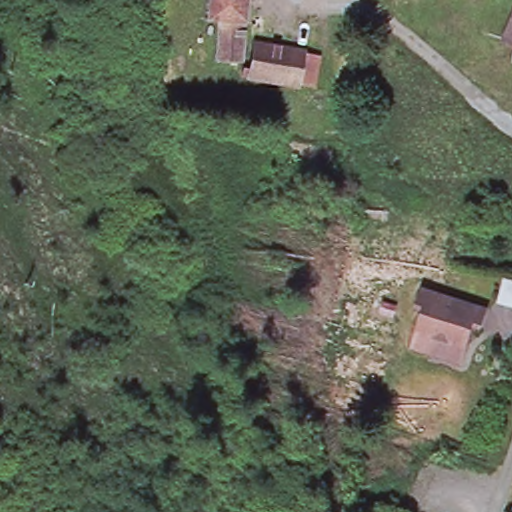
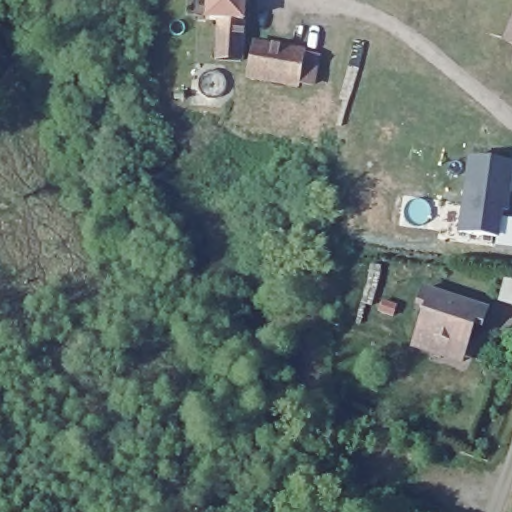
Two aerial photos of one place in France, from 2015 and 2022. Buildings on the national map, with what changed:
unchanged [(211,59),(214,22),(200,21),(202,0),(240,0),(235,61),(211,59)]
unchanged [(507,40),(512,30),(512,42),(507,40)]
unchanged [(309,89),(296,86),(295,89),(247,79),(253,44),(302,54),(302,57),(314,60),(309,89)]
new [(497,236),(459,232),(468,156),(512,161),(512,174),(507,217),(512,218),(512,248),(497,246),(497,236)]
unchanged [(414,350),(418,338),(427,312),(419,310),(425,293),(489,314),(482,332),(475,328),(467,353),(462,366),(414,350)]

